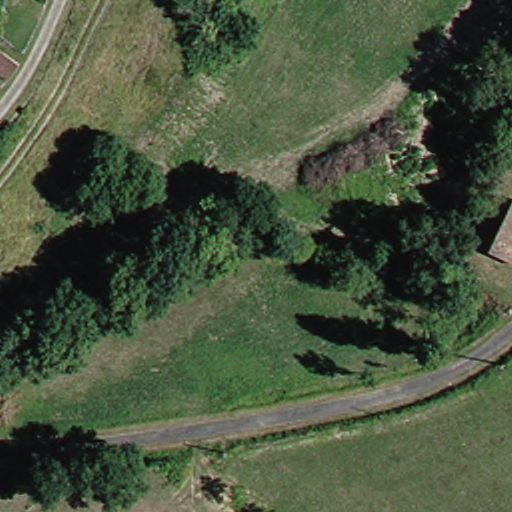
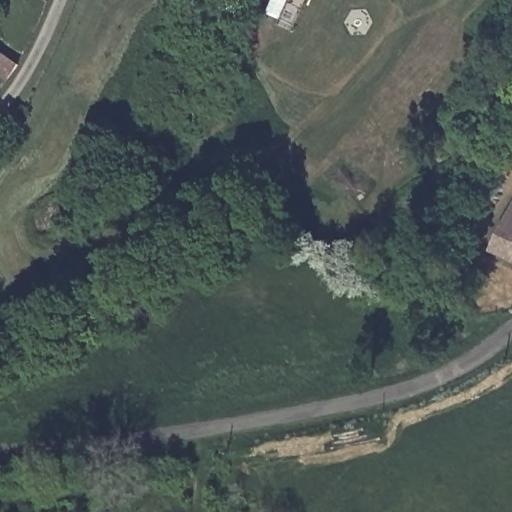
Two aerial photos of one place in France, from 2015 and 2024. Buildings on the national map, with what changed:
unchanged [(512,272),(484,257),(510,201),(512,202),(512,272)]

